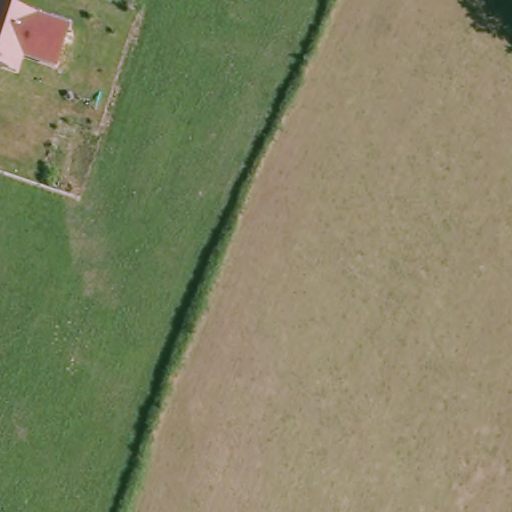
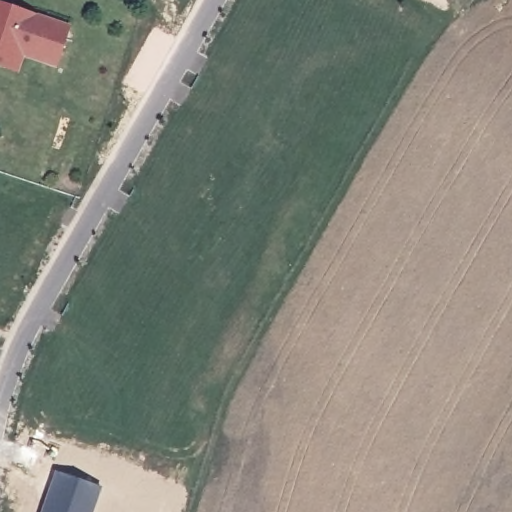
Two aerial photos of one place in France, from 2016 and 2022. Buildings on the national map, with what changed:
unchanged [(0,63),(0,0),(67,26),(53,65),(20,52),(14,69),(2,64),(0,63)]
new [(94,512),(39,512),(53,470),(103,486),(94,512)]

